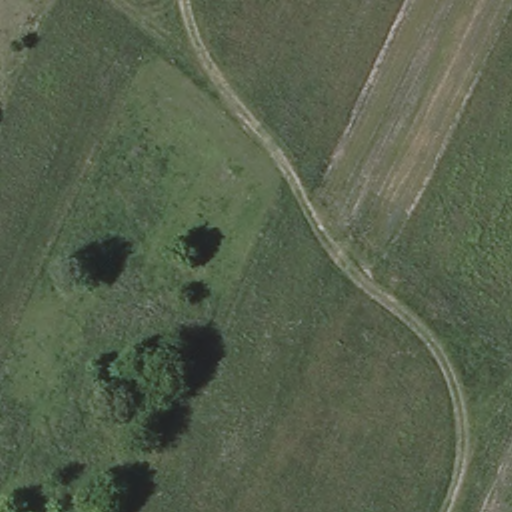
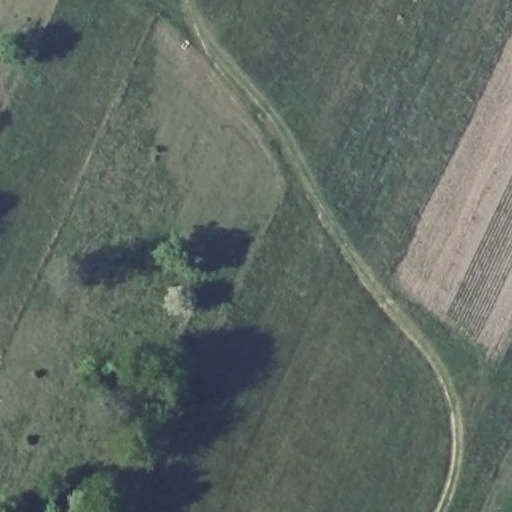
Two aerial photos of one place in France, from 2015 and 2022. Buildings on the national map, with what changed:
[]

